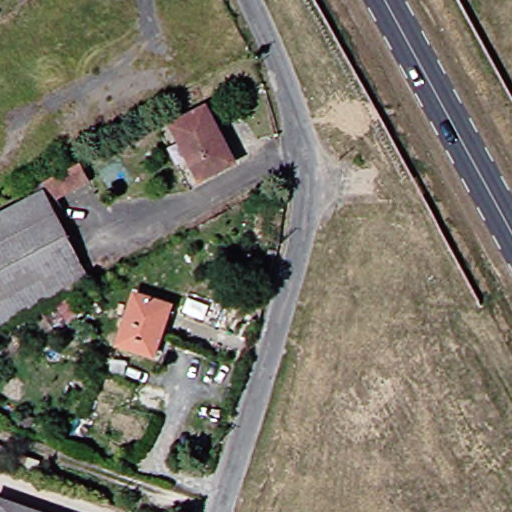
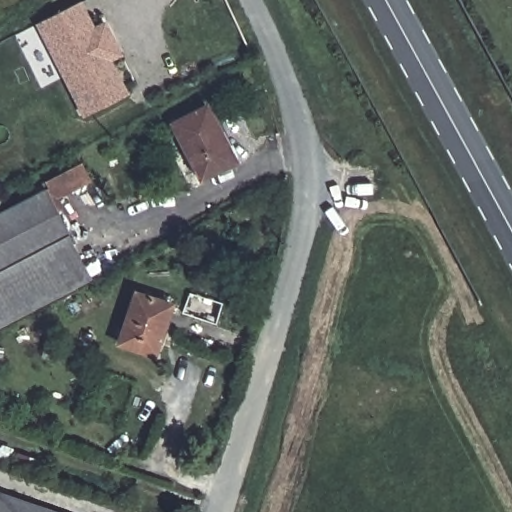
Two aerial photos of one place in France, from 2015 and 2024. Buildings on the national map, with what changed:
new [(76,3),(124,96),(81,117),(34,24),(76,3)]
new [(101,25),(117,56),(106,61),(90,30),(101,25)]
unchanged [(204,179),(176,124),(209,106),(236,161),(204,179)]
unchanged [(33,191),(79,166),(86,181),(54,198),(60,210),(53,213),(67,238),(0,274),(0,220),(38,200),(33,191)]
unchanged [(91,283),(0,334),(0,274),(67,238),(91,283)]
unchanged [(160,356),(126,344),(145,293),(179,305),(160,356)]
unchanged [(87,342),(80,339),(83,332),(90,334),(87,342)]
unchanged [(0,508),(4,497),(47,512),(0,512),(0,508)]

